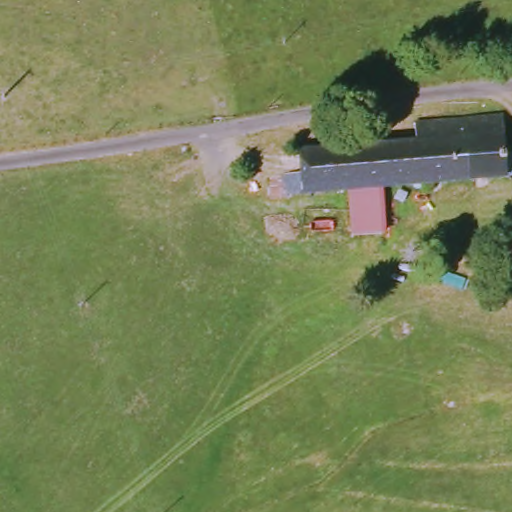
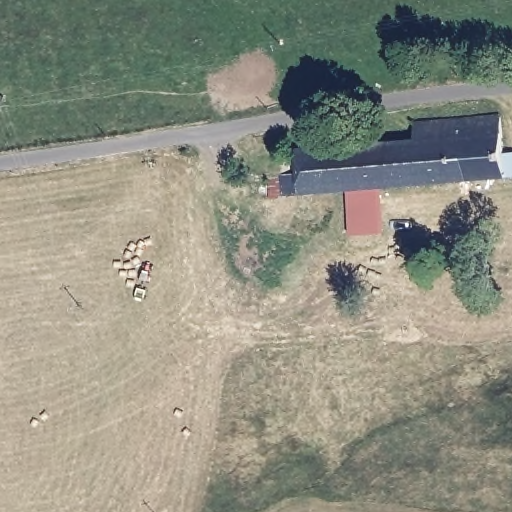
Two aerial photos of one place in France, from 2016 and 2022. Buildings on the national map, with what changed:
unchanged [(259,194),(258,179),(296,173),(295,151),(412,144),(412,129),(497,124),(498,158),(512,159),(512,182),(498,183),(275,198),(260,199),(259,194)]

